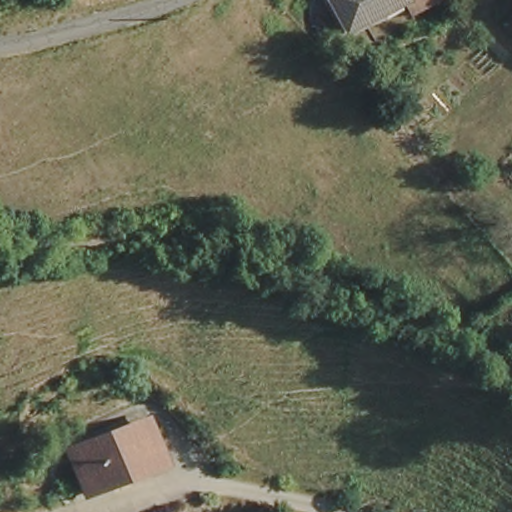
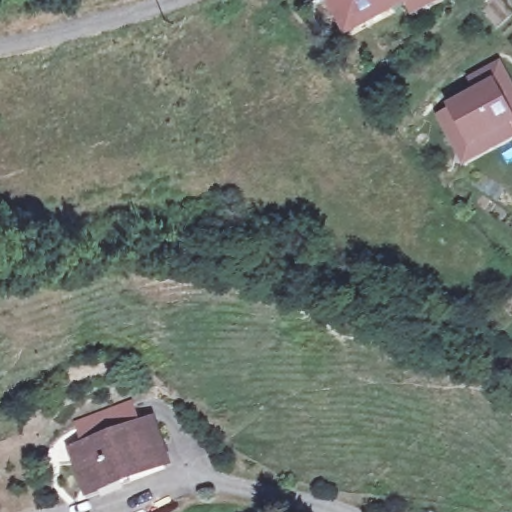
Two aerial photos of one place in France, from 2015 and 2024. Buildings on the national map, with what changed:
new [(345,36),(326,0),(349,0),(342,3),(359,30),(345,36)]
unchanged [(376,17),(379,24),(360,33),(342,3),(349,0),(410,0),(376,17)]
unchanged [(418,8),(413,0),(434,0),(418,8)]
new [(499,66),(512,94),(512,109),(492,69),(499,66)]
new [(464,83),(492,69),(512,109),(512,127),(462,152),(443,113),(442,110),(470,95),(464,83)]
new [(462,152),(512,127),(512,134),(459,161),(437,116),(443,113),(462,152)]
unchanged [(146,421),(162,462),(87,490),(72,449),(146,421)]

